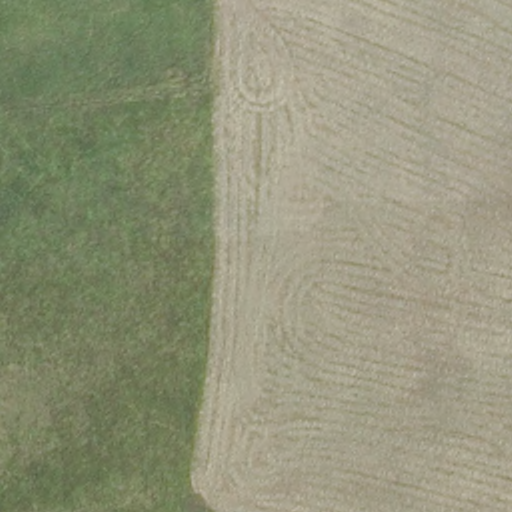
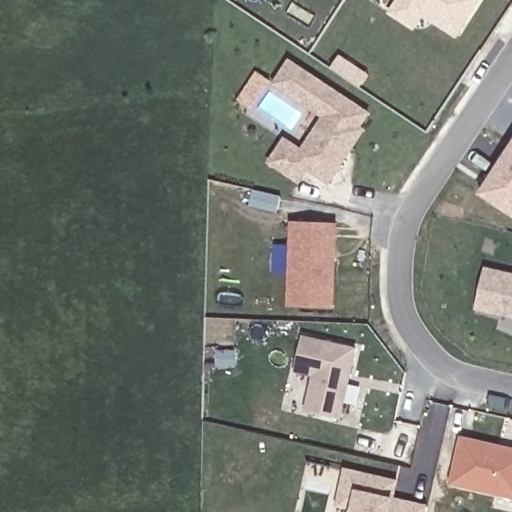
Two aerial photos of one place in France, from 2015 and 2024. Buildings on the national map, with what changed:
new [(399,0),(479,0),(455,37),(399,0)]
new [(322,117),(272,86),(287,62),(366,114),(357,129),(361,131),(327,184),(305,170),(297,182),(268,164),(283,141),(300,152),(311,135),(322,117)]
new [(490,179),(488,177),(505,151),(508,152),(512,146),(512,215),(480,195),(490,179)]
new [(291,223),(334,224),(330,308),(287,307),(291,223)]
new [(512,275),(512,317),(473,308),(483,268),(512,275)]
new [(300,338),(354,349),(339,420),(305,412),(312,376),(293,372),(300,338)]
new [(459,440),(512,452),(512,498),(449,483),(459,440)]
new [(353,510),(337,506),(340,489),(345,471),(395,482),(391,500),(409,503),(427,508),(426,512),(352,512),(353,510)]

